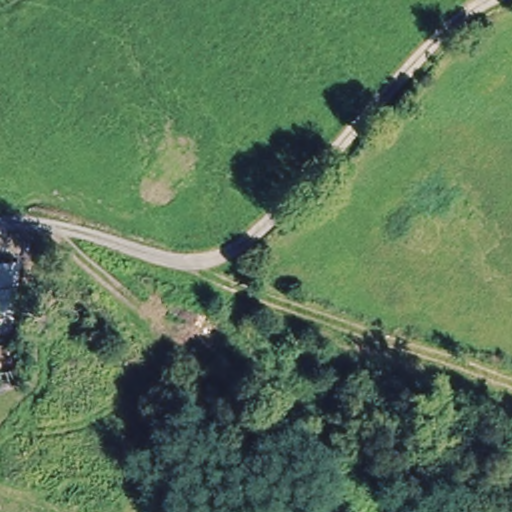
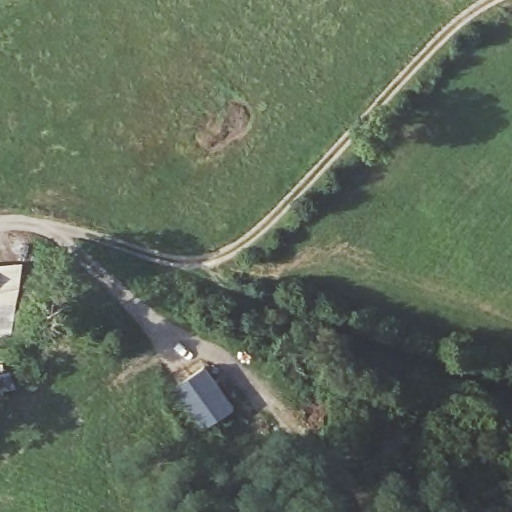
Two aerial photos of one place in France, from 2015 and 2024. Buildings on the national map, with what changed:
unchanged [(15,341),(0,340),(0,265),(22,264),(15,341)]
new [(235,404),(205,428),(170,385),(201,361),(235,404)]

